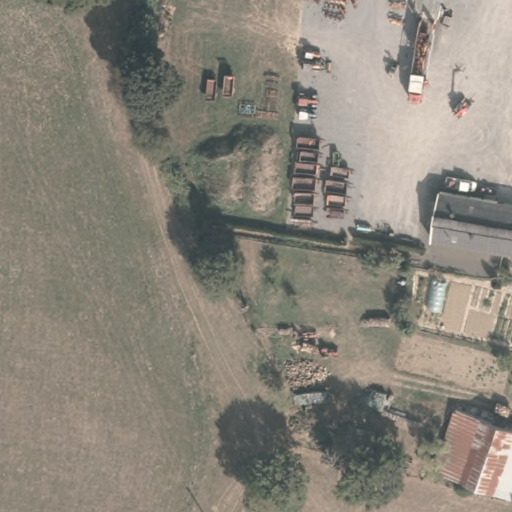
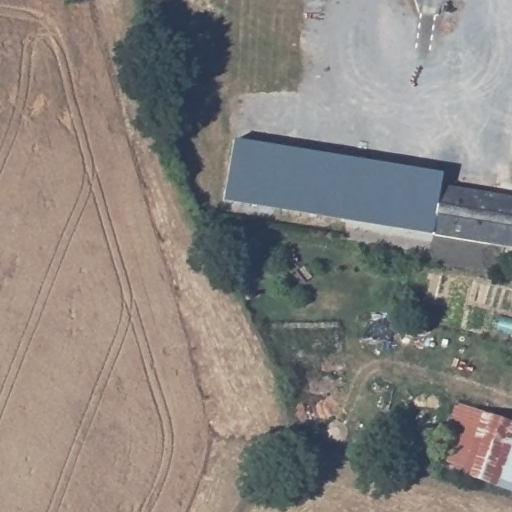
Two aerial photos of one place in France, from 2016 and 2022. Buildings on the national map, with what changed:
new [(224,200),(233,139),(442,174),(440,187),(432,235),(224,200)]
unchanged [(432,235),(440,187),(512,199),(512,248),(504,247),(432,235)]
unchanged [(512,424),(512,491),(500,486),(436,465),(457,404),(512,424)]

